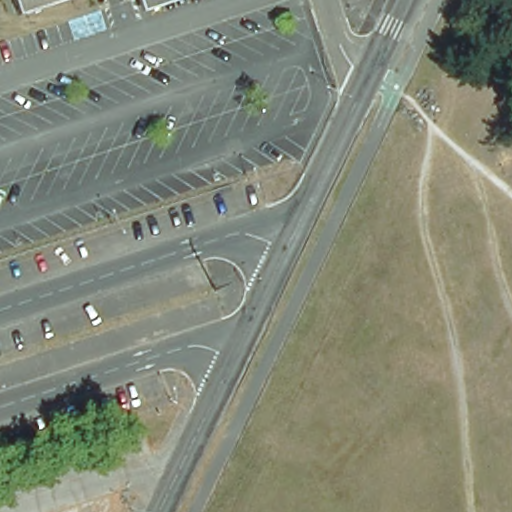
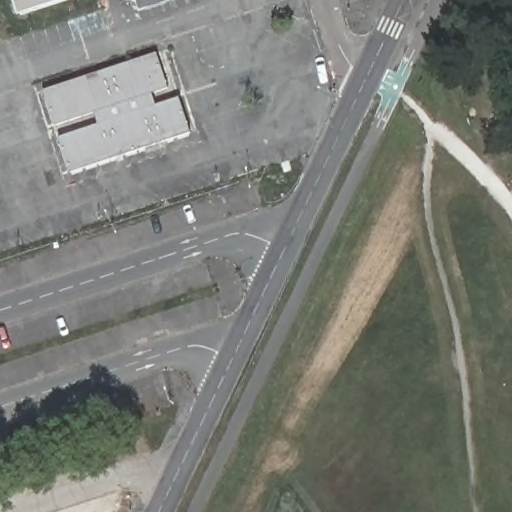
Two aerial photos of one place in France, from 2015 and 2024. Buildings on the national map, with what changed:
unchanged [(13,0),(65,0),(18,15),(13,0)]
unchanged [(137,0),(185,0),(141,14),(137,0)]
new [(70,172),(59,138),(98,125),(95,113),(54,124),(44,90),(158,53),(158,54),(168,88),(152,93),(155,105),(179,97),(190,132),(70,172)]

